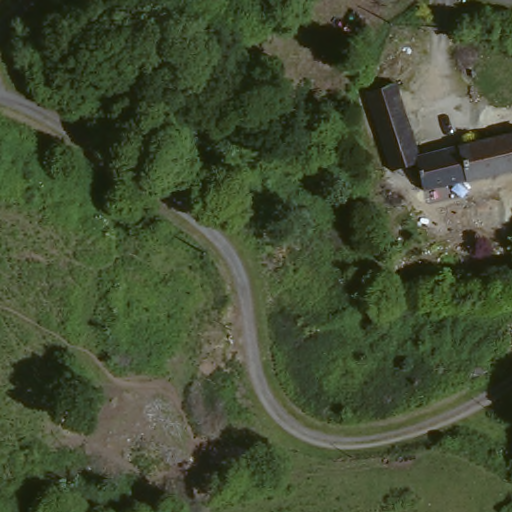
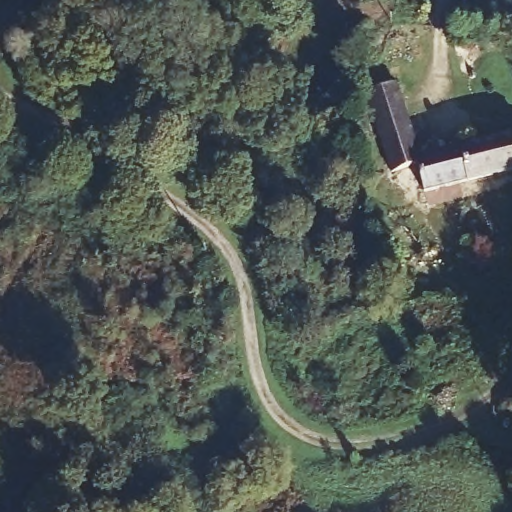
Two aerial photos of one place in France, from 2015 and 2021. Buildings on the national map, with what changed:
unchanged [(409,116),(419,114),(423,126),(413,129),(418,145),(433,140),(434,150),(512,132),(512,170),(426,190),(418,159),(388,166),(368,90),(398,82),(409,116)]

